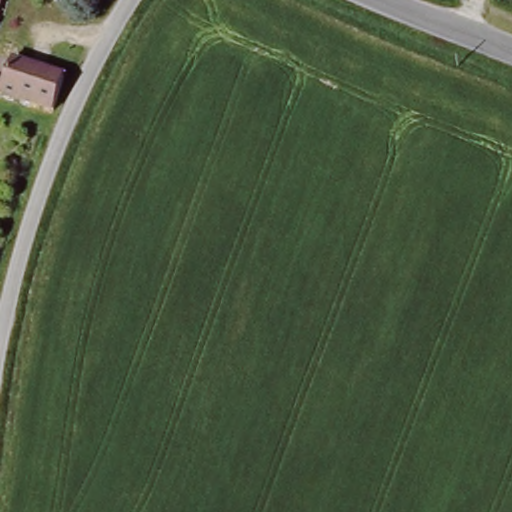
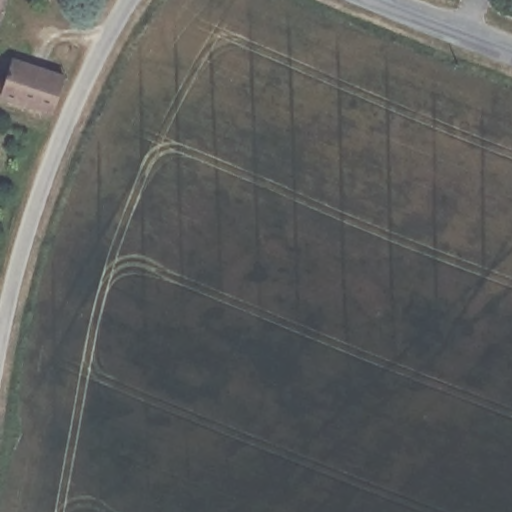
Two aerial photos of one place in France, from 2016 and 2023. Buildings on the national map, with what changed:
unchanged [(0,73),(5,74),(9,61),(65,78),(57,111),(0,93),(0,73)]

